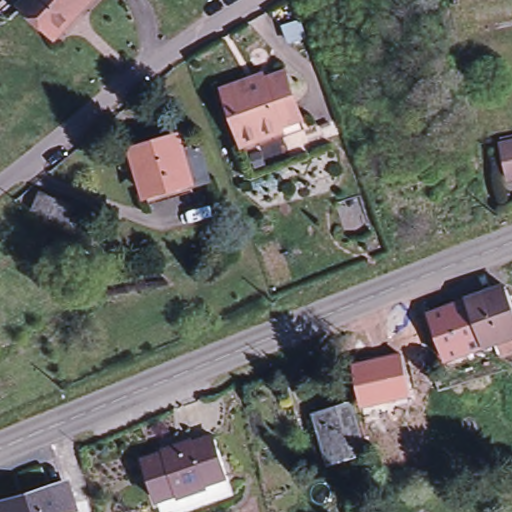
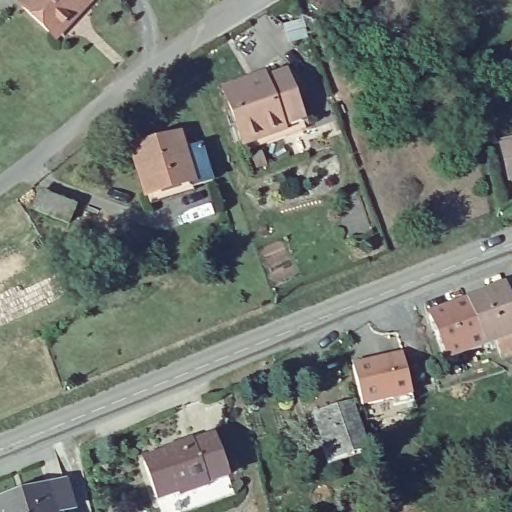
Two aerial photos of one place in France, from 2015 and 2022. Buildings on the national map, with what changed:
unchanged [(72,19),(56,37),(17,0),(84,0),(68,16),(72,19)]
unchanged [(260,76),(262,81),(283,75),(299,119),(280,126),(282,132),(241,147),(222,90),(260,76)]
unchanged [(208,178),(186,185),(185,180),(144,193),(130,149),(173,135),(180,155),(199,148),(208,178)]
unchanged [(512,178),(510,178),(502,144),(512,142),(512,178)]
unchanged [(83,205),(75,223),(40,208),(48,190),(83,205)]
unchanged [(507,287),(512,299),(512,334),(499,339),(482,345),(446,360),(430,318),(465,304),(482,297),(507,287)]
unchanged [(415,398),(365,409),(354,364),(403,353),(415,398)]
unchanged [(349,406),(362,444),(330,454),(318,416),(349,406)]
unchanged [(195,442),(195,444),(216,438),(230,478),(209,485),(210,488),(200,491),(187,444),(195,442)]
unchanged [(181,498),(180,495),(160,502),(146,462),(165,455),(164,452),(187,444),(200,491),(181,498)]
unchanged [(55,476),(60,492),(56,499),(47,502),(51,512),(0,512),(0,494),(40,480),(55,476)]

